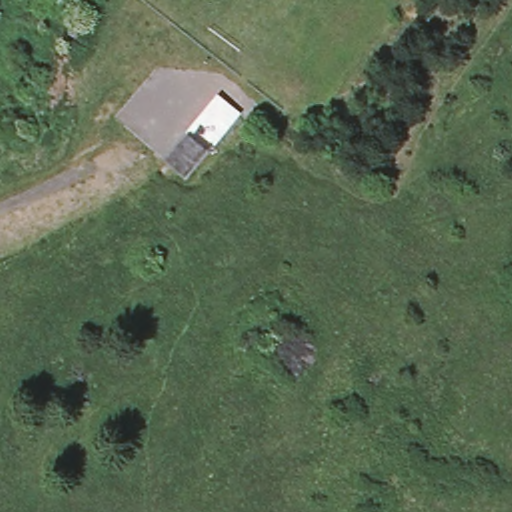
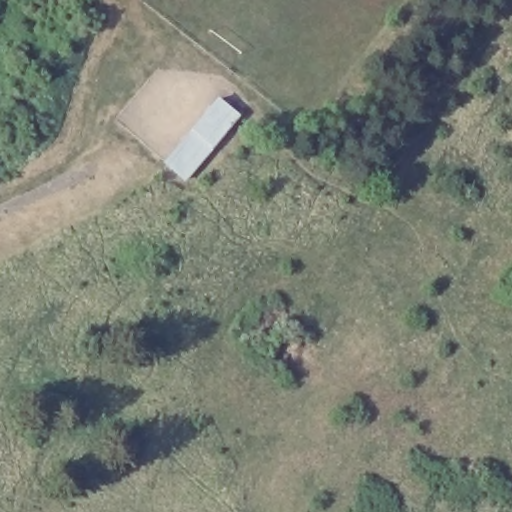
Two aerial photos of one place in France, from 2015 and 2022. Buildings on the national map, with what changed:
unchanged [(160,159),(216,93),(241,112),(183,177),(160,159)]

